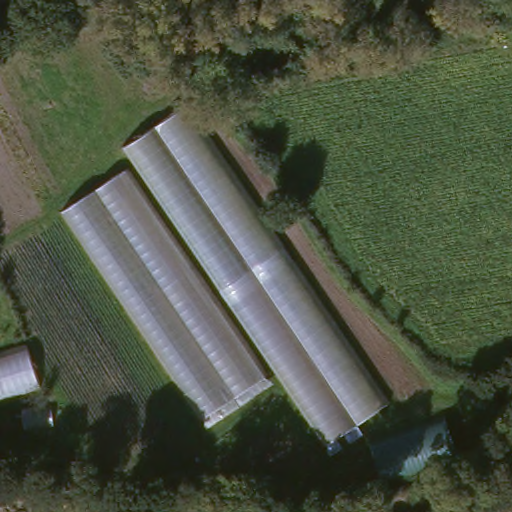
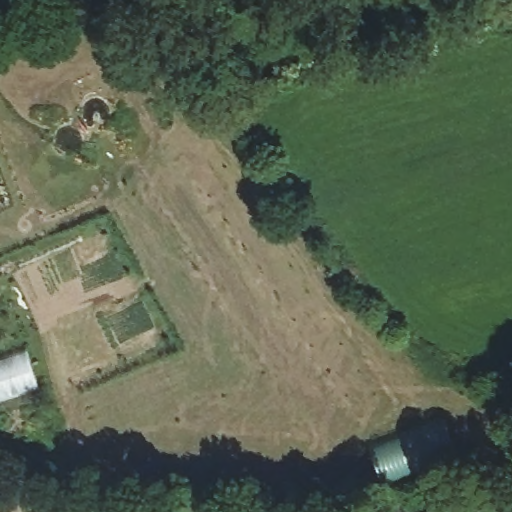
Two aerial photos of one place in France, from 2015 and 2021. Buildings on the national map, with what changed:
demolished [(332,458),(118,150),(183,106),(395,413),(332,458)]
demolished [(204,421),(59,213),(122,167),(263,375),(204,421)]
unchanged [(0,404),(0,353),(21,346),(37,388),(0,404)]

